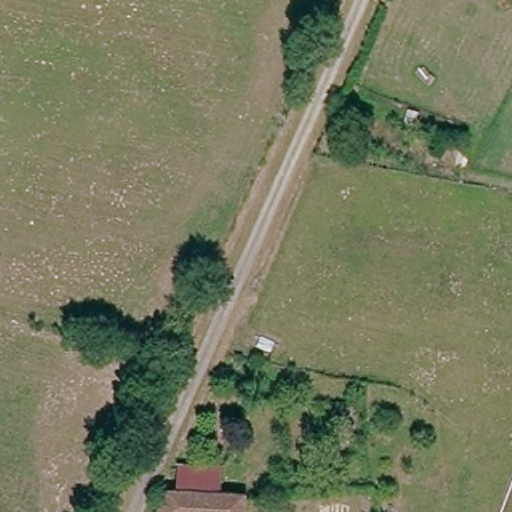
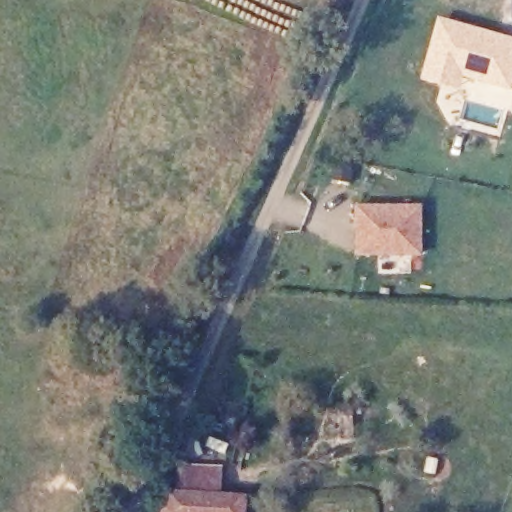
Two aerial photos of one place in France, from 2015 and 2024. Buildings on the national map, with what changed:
new [(466,28),(512,41),(512,73),(508,86),(444,69),(440,83),(424,79),(440,26),(464,31),(466,28)]
new [(421,205),(422,257),(355,257),(353,205),(421,205)]
unchanged [(177,459),(204,462),(203,470),(225,472),(222,504),(173,500),(177,459)]
unchanged [(173,500),(222,504),(235,505),(235,512),(149,512),(151,498),(173,500)]

